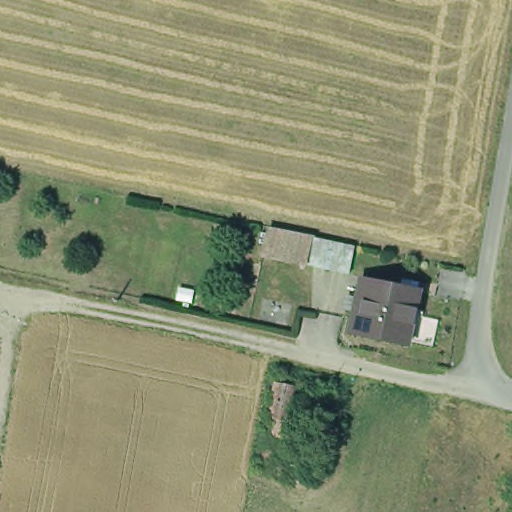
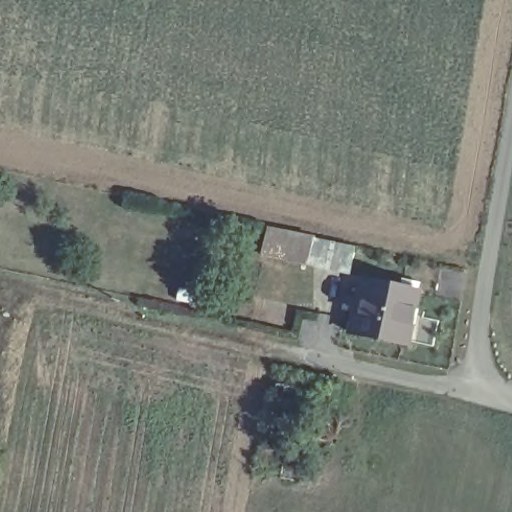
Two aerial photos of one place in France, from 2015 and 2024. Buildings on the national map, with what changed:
unchanged [(350,273),(328,268),(312,265),(317,238),(335,242),(355,247),(350,273)]
unchanged [(407,338),(405,343),(356,332),(346,330),(356,289),(357,289),(359,282),(367,284),(368,279),(417,290),(412,314),(434,319),(428,343),(407,338)]
unchanged [(295,420),(273,416),(280,383),(300,387),(295,420)]
unchanged [(273,460),(263,459),(265,448),(275,450),(273,460)]
unchanged [(278,469),(285,470),(285,462),(290,463),(307,466),(304,483),(287,479),(282,479),(277,478),(278,469)]

